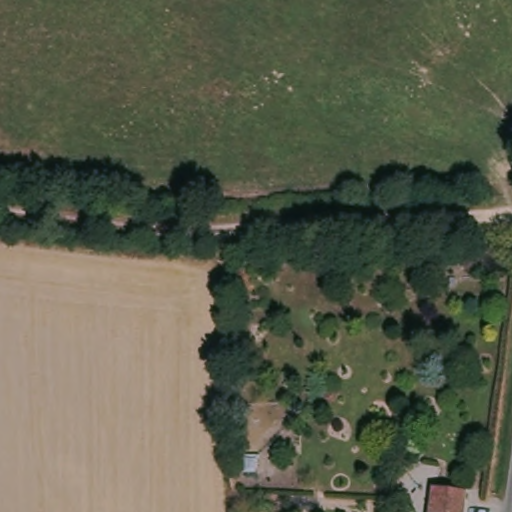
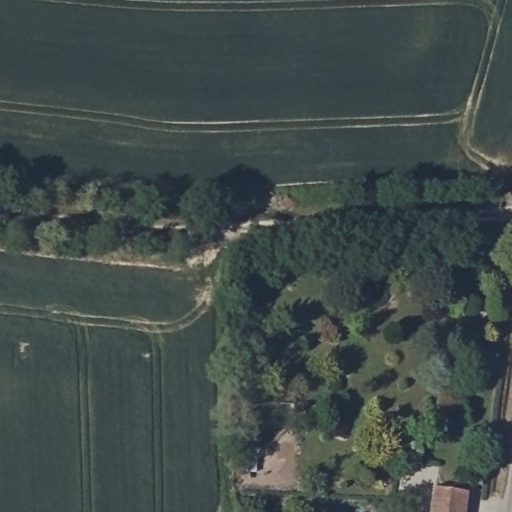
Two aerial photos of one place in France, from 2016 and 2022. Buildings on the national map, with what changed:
unchanged [(437,492),(469,495),(467,512),(434,512),(437,492)]

